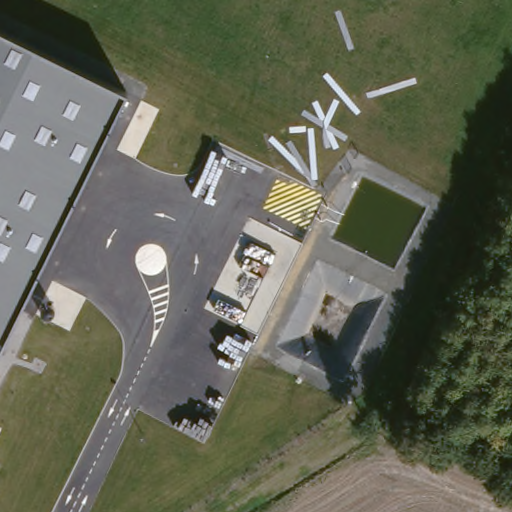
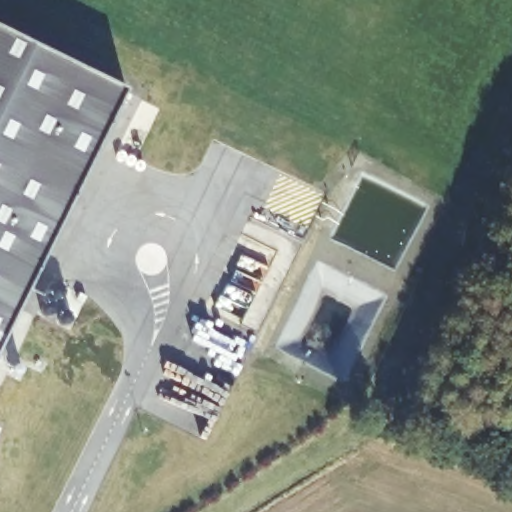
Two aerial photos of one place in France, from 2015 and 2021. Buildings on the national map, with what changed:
unchanged [(0,30),(125,91),(0,344),(0,30)]

